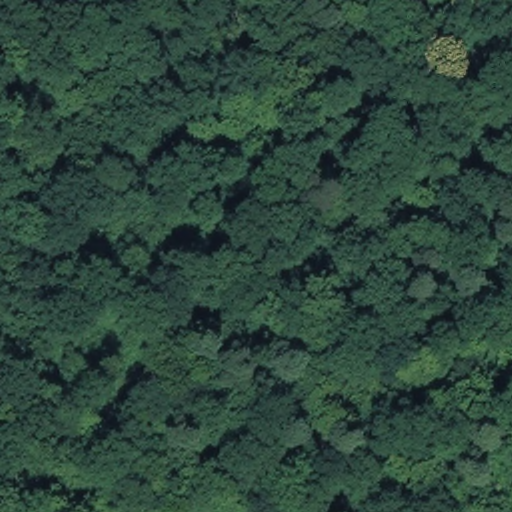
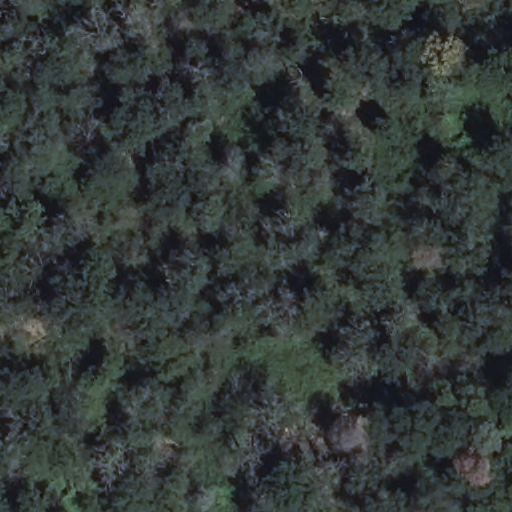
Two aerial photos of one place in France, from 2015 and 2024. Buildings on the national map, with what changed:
unchanged [(479,512),(383,512),(367,467),(459,444),(479,512)]

